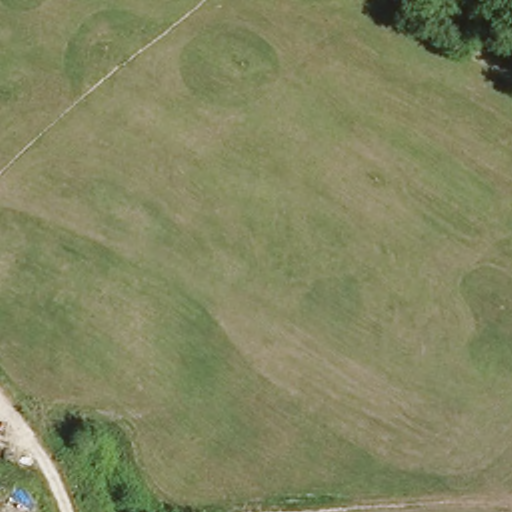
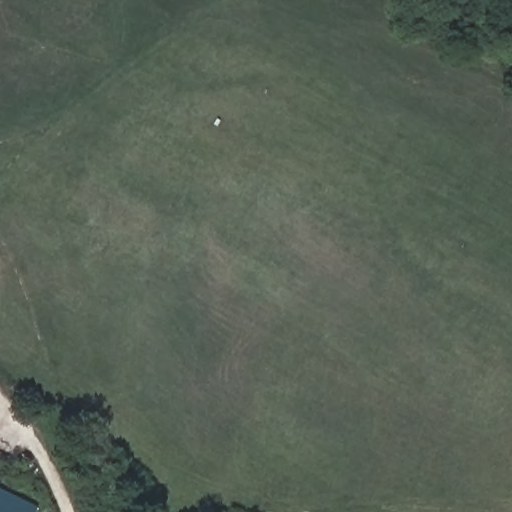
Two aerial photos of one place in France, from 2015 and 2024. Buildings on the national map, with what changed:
unchanged [(0,455),(0,432),(9,436),(0,455)]
new [(0,489),(41,508),(40,512),(0,512),(0,489)]

